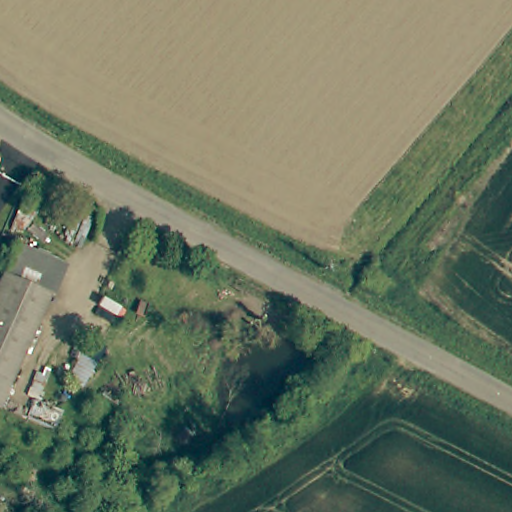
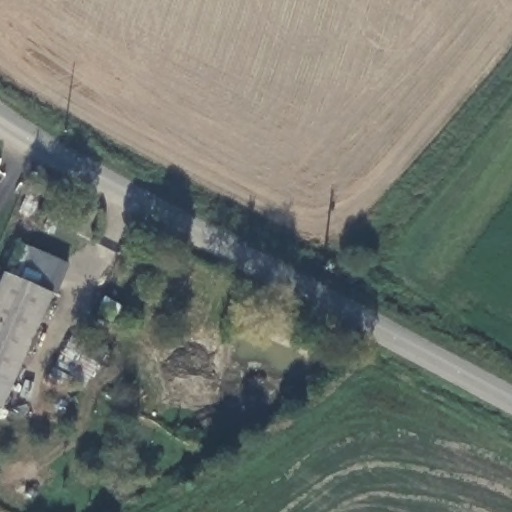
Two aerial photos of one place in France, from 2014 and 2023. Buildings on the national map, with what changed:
unchanged [(63,267),(50,295),(46,293),(0,401),(0,273),(11,245),(63,267)]
unchanged [(79,353),(93,362),(77,388),(63,379),(79,353)]

